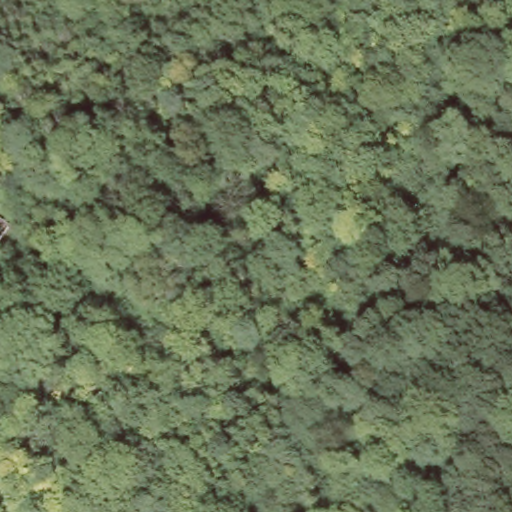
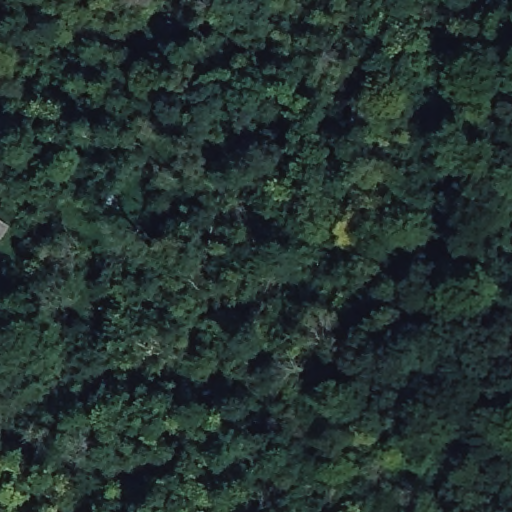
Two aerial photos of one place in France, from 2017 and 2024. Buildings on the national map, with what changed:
unchanged [(12,230),(0,243),(0,219),(12,230)]

